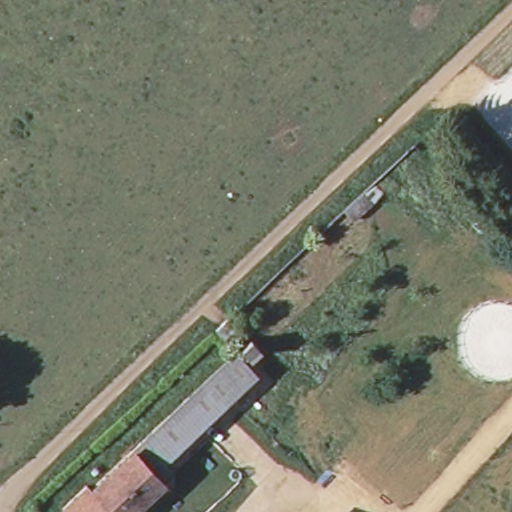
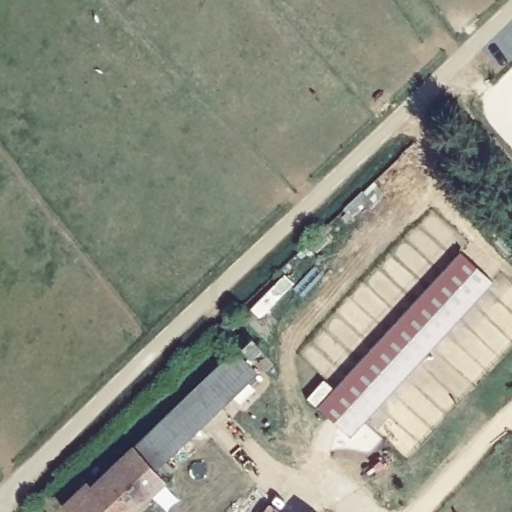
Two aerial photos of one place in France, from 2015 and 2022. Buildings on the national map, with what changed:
unchanged [(345,202),(357,214),(339,232),(327,219),(345,202)]
new [(493,282),(350,436),(317,407),(459,252),(493,282)]
unchanged [(183,395),(226,352),(249,376),(206,418),(183,395)]
unchanged [(91,487),(131,447),(183,395),(206,418),(161,462),(170,471),(161,480),(163,482),(166,485),(150,500),(147,496),(130,512),(114,512),(91,487)]
unchanged [(63,506),(87,483),(91,487),(114,512),(70,512),(63,506)]

